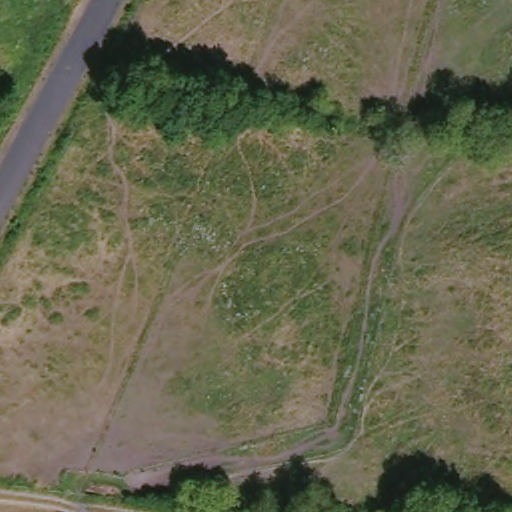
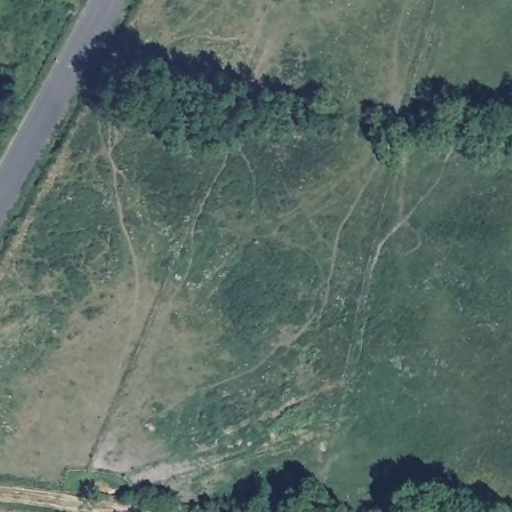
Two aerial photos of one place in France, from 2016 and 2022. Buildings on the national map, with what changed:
[]

